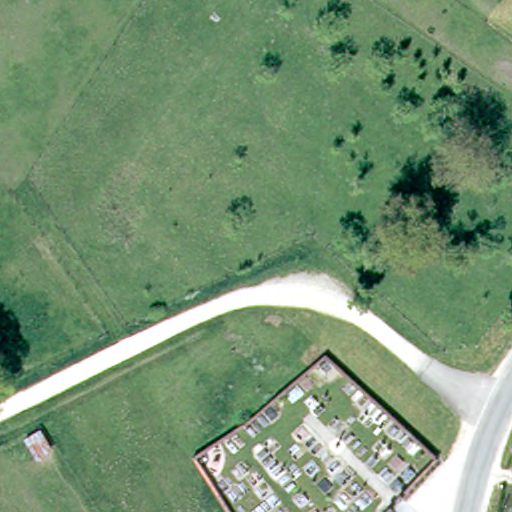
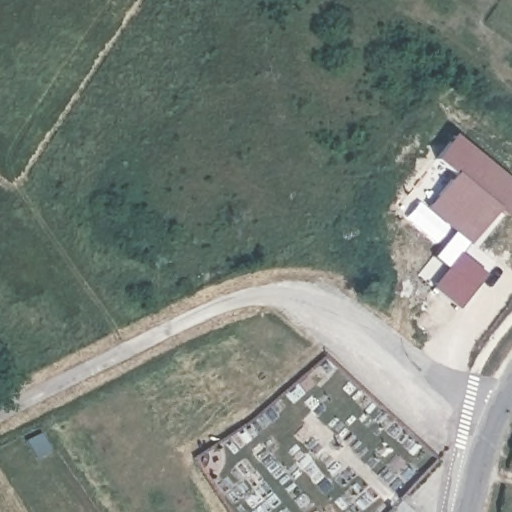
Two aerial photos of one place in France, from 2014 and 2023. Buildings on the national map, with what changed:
new [(424,209),(452,173),(433,158),(452,134),(512,181),(512,207),(506,215),(497,209),(468,245),(424,209)]

